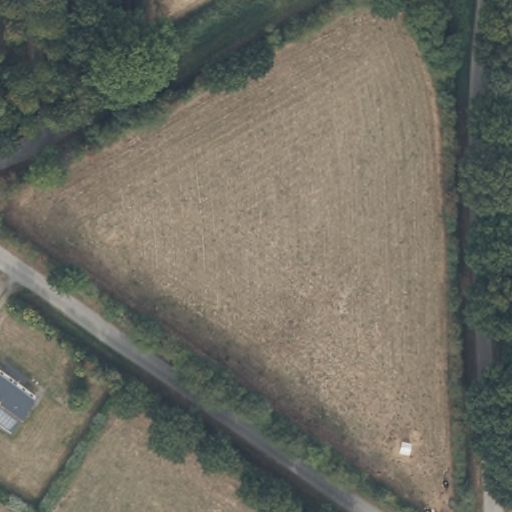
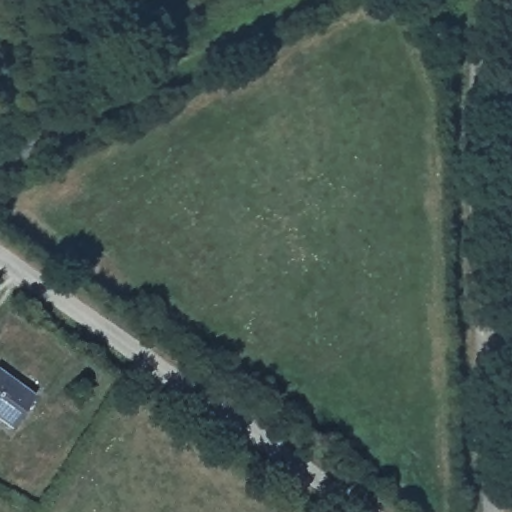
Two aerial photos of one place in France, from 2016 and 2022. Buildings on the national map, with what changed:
unchanged [(14,427),(0,419),(0,370),(35,395),(14,427)]

